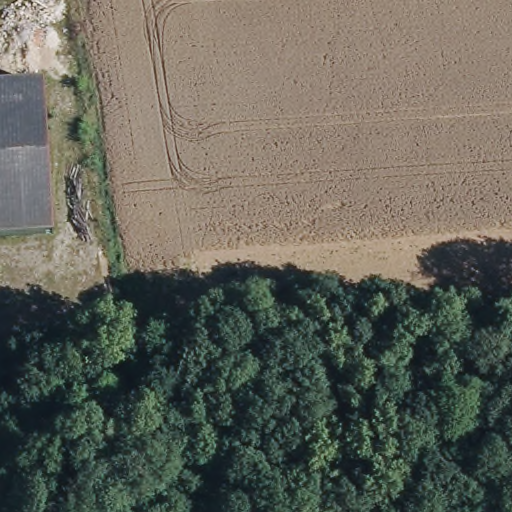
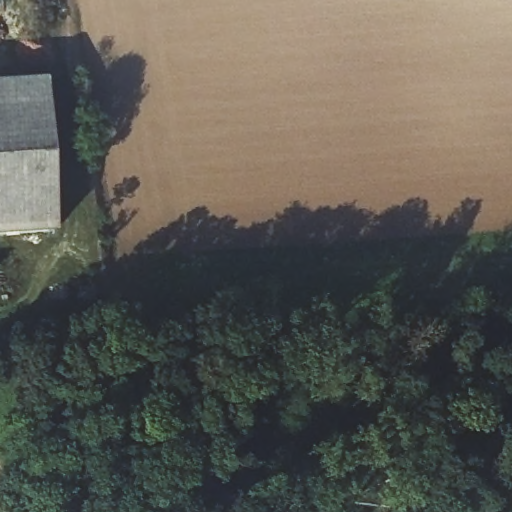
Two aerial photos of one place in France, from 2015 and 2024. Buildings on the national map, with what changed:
unchanged [(58,234),(0,237),(0,85),(47,82),(58,234)]

